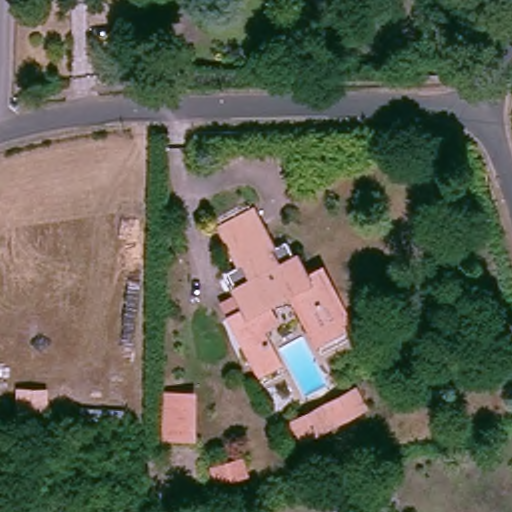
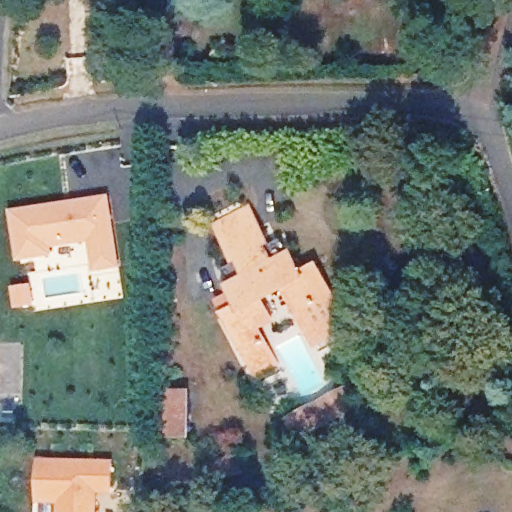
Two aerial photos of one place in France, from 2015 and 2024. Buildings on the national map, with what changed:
new [(19,261),(12,210),(112,195),(122,268),(95,272),(91,241),(52,246),(53,256),(19,261)]
unchanged [(245,372),(219,318),(234,311),(214,272),(231,263),(217,231),(212,221),(240,207),(245,217),(261,249),(276,242),(294,281),(309,273),(335,328),(339,337),(310,352),(305,343),(278,288),(251,302),(259,321),(244,330),(260,364),(265,372),(249,381),(245,372)]
unchanged [(197,390),(199,437),(155,436),(158,387),(197,390)]
unchanged [(348,388),(357,407),(291,438),(284,419),(348,388)]
unchanged [(208,452),(241,451),(244,480),(212,485),(208,452)]
new [(38,457),(114,460),(112,494),(100,493),(99,512),(55,512),(55,504),(37,502),(38,457)]

